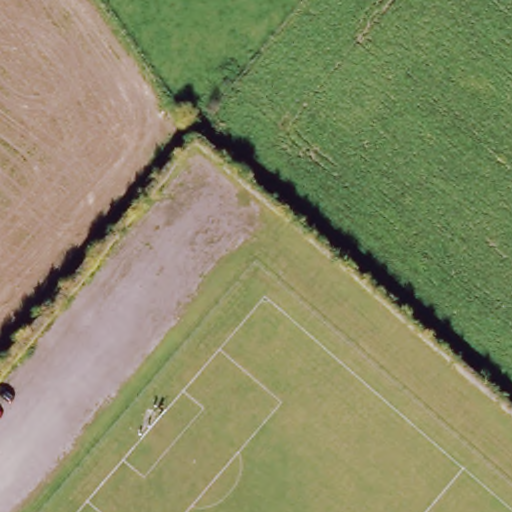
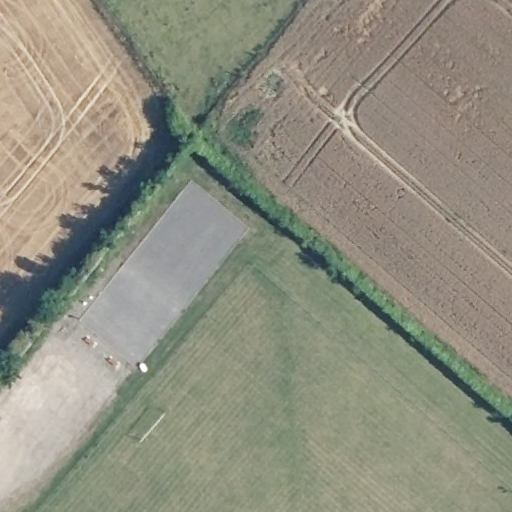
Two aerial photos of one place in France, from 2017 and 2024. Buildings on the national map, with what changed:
[]

